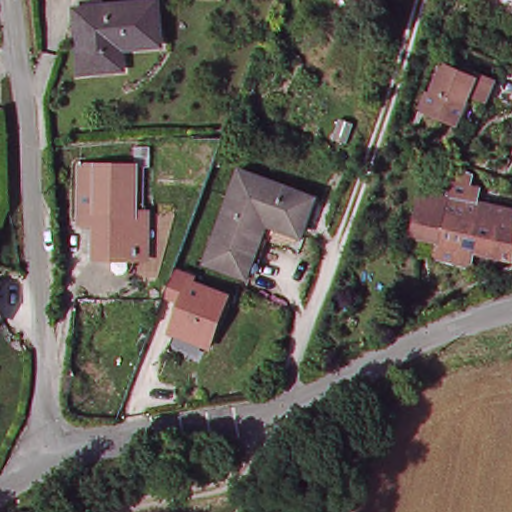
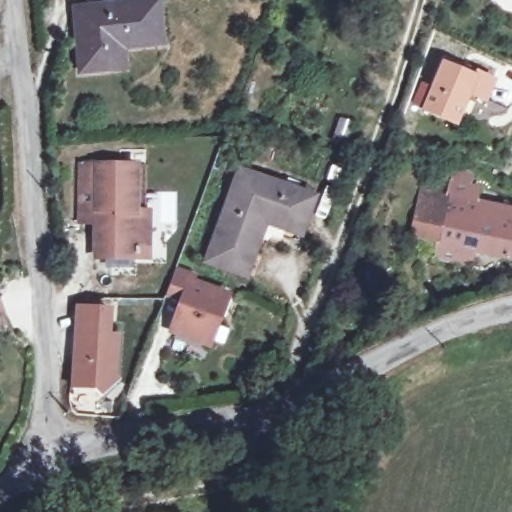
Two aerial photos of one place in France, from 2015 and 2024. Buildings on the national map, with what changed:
unchanged [(351,0),(381,0),(378,10),(368,6),(351,0)]
unchanged [(105,70),(78,72),(72,7),(155,1),(160,45),(120,50),(120,69),(105,70)]
unchanged [(447,67),(476,79),(478,75),(496,81),(487,102),(472,97),(460,125),(428,113),(447,67)]
unchanged [(128,257),(88,257),(90,222),(72,221),(73,165),(129,166),(143,166),(141,212),(140,242),(140,257),(128,257)]
unchanged [(451,167),(465,170),(463,182),(474,185),(472,196),(512,205),(512,241),(510,255),(497,252),(485,262),(434,252),(451,167)]
unchanged [(241,171),(317,199),(303,234),(269,222),(249,275),(208,260),(241,171)]
unchanged [(199,276),(197,283),(232,295),(213,348),(172,335),(180,305),(165,300),(177,268),(199,276)]
new [(117,377),(120,380),(100,398),(95,391),(70,389),(75,305),(112,308),(111,333),(118,335),(117,377)]
unchanged [(0,325),(0,317),(2,325),(0,325)]

